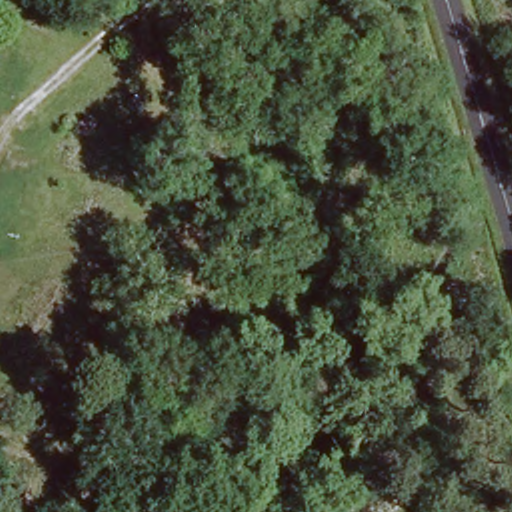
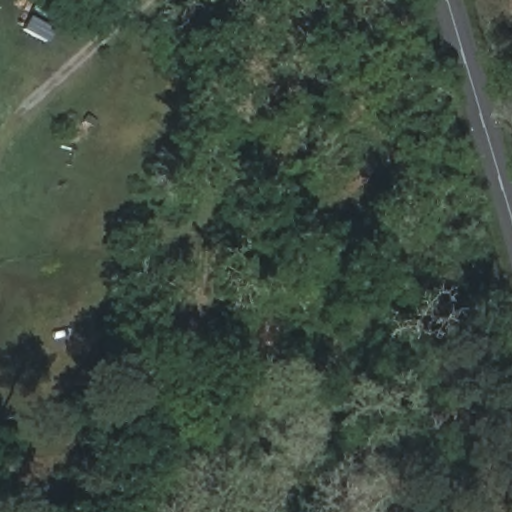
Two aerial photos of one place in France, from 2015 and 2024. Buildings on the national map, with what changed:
[]

